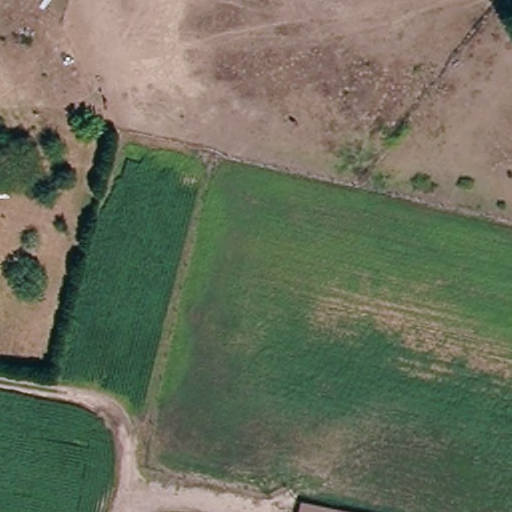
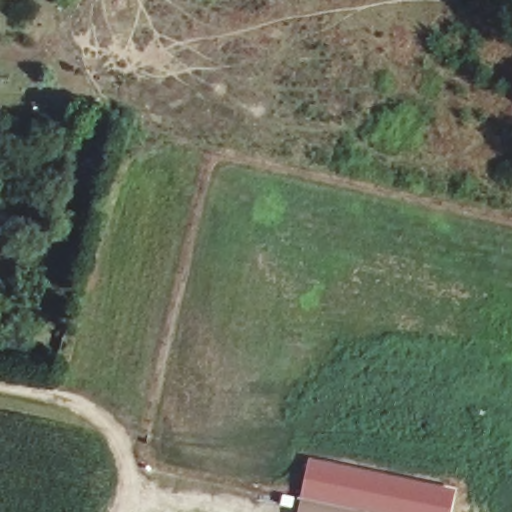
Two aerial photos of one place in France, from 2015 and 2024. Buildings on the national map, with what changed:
new [(455,488),(450,512),(299,512),(309,459),(455,488)]
demolished [(357,512),(298,512),(300,500),(357,512)]

